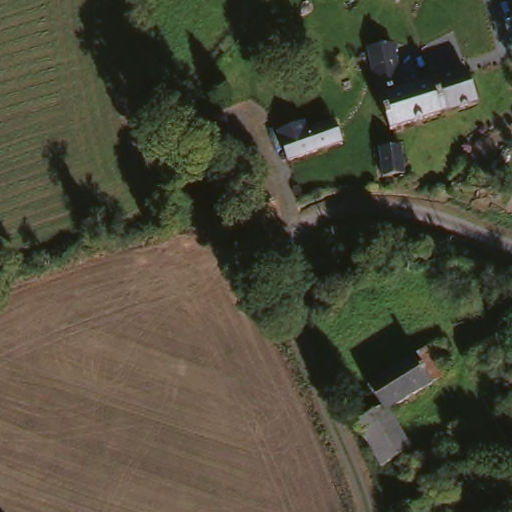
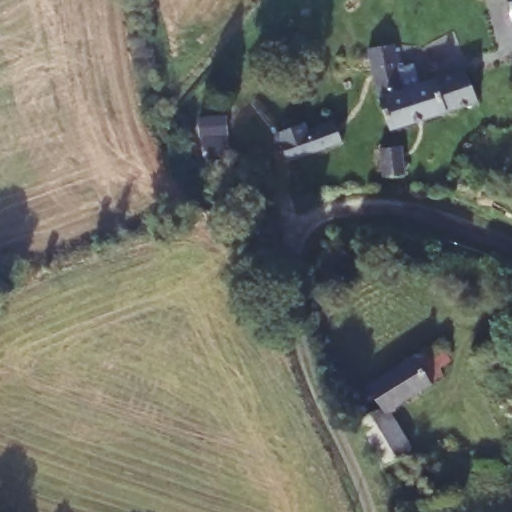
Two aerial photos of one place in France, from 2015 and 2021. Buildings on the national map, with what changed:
unchanged [(377,98),(367,52),(391,47),(400,91),(377,98)]
unchanged [(388,133),(378,102),(415,90),(464,74),(474,103),(388,133)]
unchanged [(278,138),(302,130),(304,136),(329,127),(331,126),(338,148),(286,166),(278,138)]
unchanged [(401,181),(380,184),(376,158),(399,156),(401,181)]
unchanged [(375,415),(362,394),(436,346),(449,366),(434,377),(438,384),(424,393),(381,421),(401,454),(397,457),(375,473),(349,432),(375,415)]

